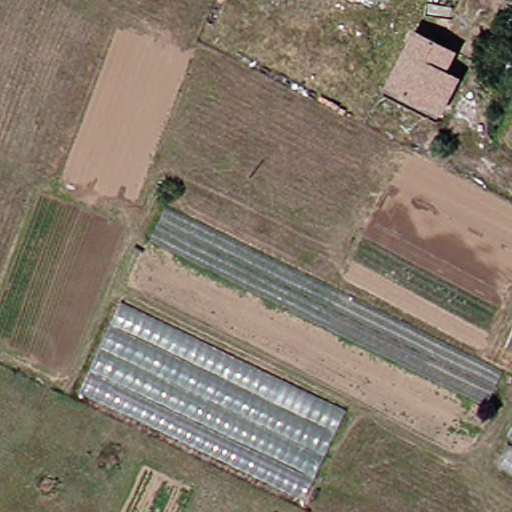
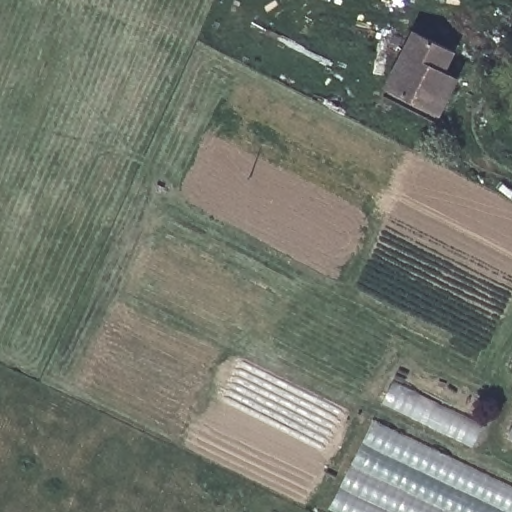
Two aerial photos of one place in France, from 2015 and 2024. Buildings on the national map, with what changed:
unchanged [(431,108),(388,92),(410,34),(454,51),(444,70),(431,108)]
demolished [(119,312),(346,415),(305,498),(83,390),(119,312)]
new [(512,512),(334,512),(330,510),(372,420),(512,486),(512,512)]
unchanged [(512,436),(512,442),(510,441),(512,436)]

